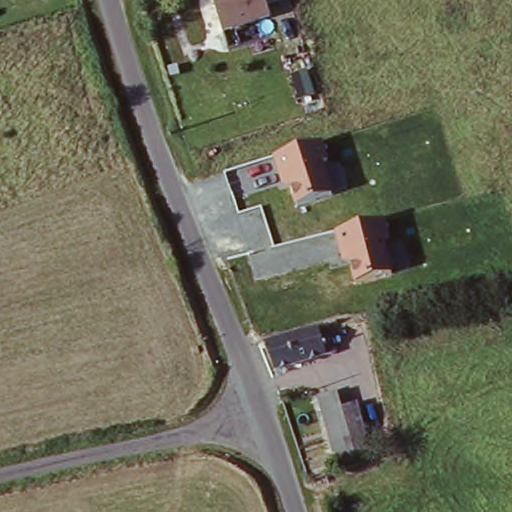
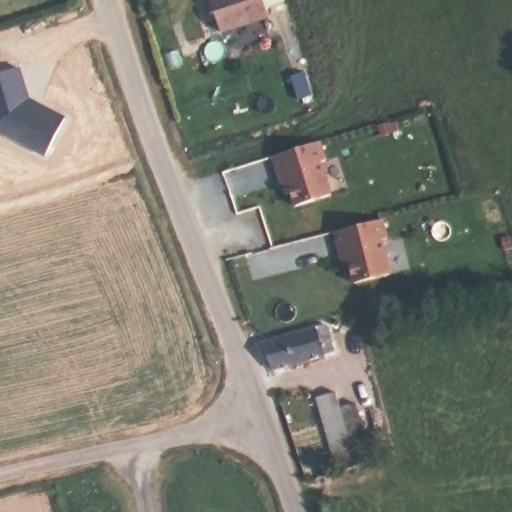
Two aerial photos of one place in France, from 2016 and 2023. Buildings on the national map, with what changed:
unchanged [(225,29),(216,0),(269,0),(272,12),(225,29)]
new [(0,75),(18,69),(27,100),(64,120),(46,155),(0,130),(0,75)]
unchanged [(331,160),(325,163),(334,195),(297,209),(288,184),(283,185),(273,153),(324,136),(331,160)]
unchanged [(393,237),(386,239),(395,273),(354,285),(348,260),(343,260),(335,229),(387,215),(393,237)]
unchanged [(317,323),(326,351),(276,366),(265,338),(317,323)]
unchanged [(338,388),(357,459),(337,465),(317,392),(338,388)]

